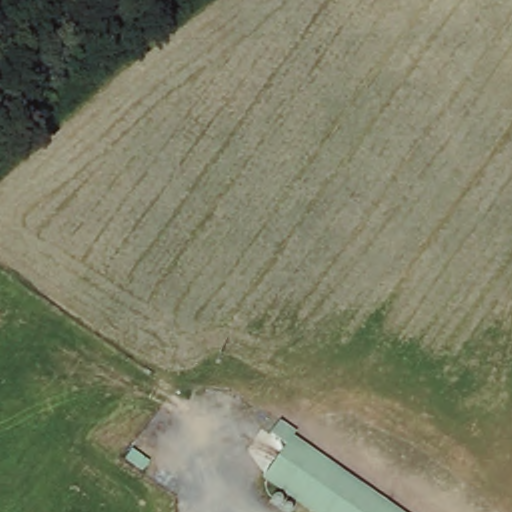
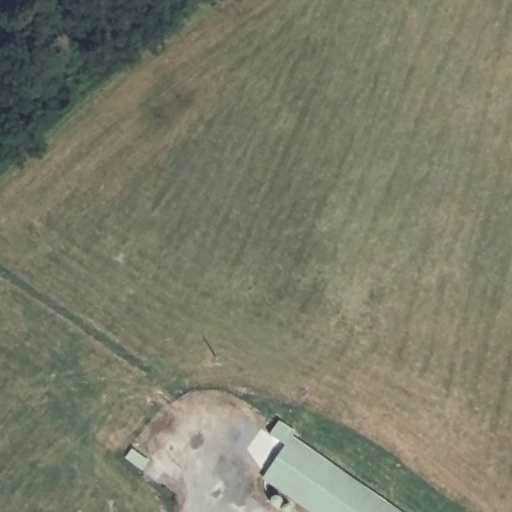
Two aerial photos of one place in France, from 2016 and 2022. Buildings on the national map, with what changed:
unchanged [(286,447),(263,431),(276,416),(298,433),(294,441),(399,512),(311,512),(264,479),(286,447)]

